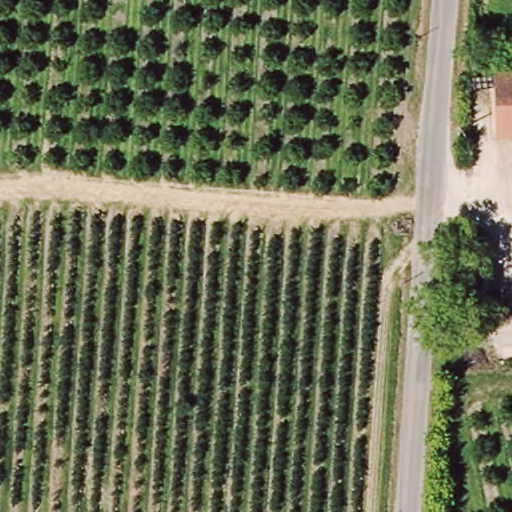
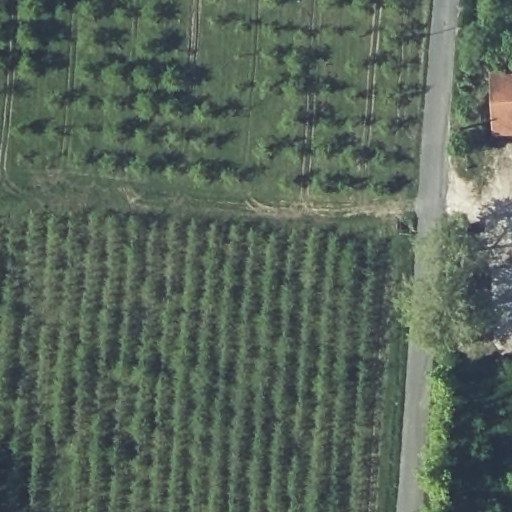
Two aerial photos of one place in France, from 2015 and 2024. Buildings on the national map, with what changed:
unchanged [(512,132),(494,133),(492,70),(512,69),(512,132)]

